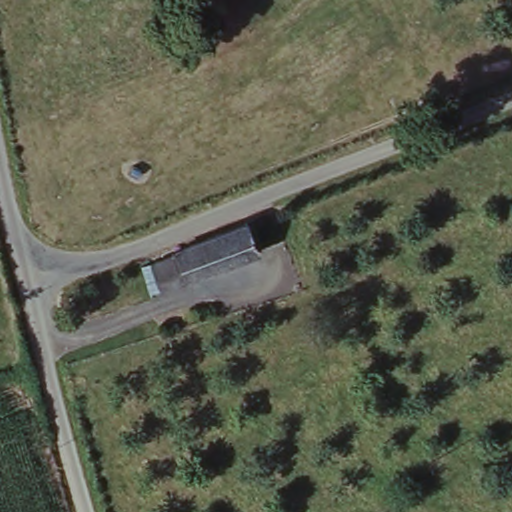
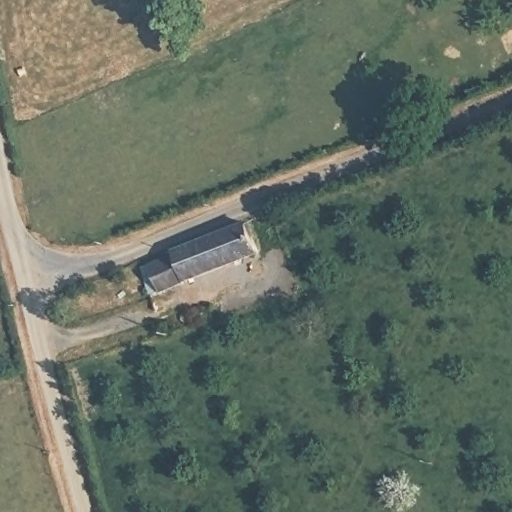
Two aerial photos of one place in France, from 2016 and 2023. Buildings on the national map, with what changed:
unchanged [(172,255),(173,250),(240,224),(252,258),(157,295),(146,266),(172,255)]
unchanged [(89,343),(98,371),(78,378),(70,349),(89,343)]

